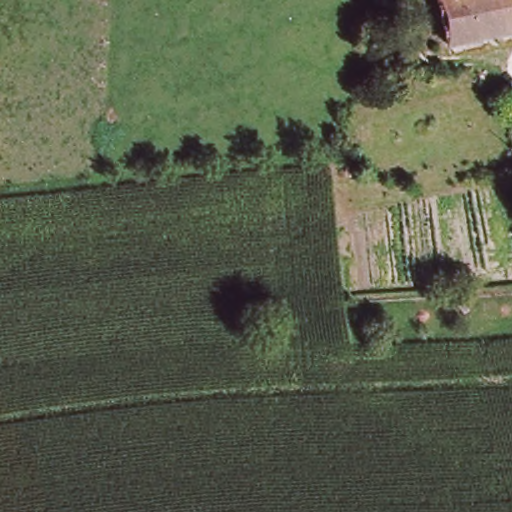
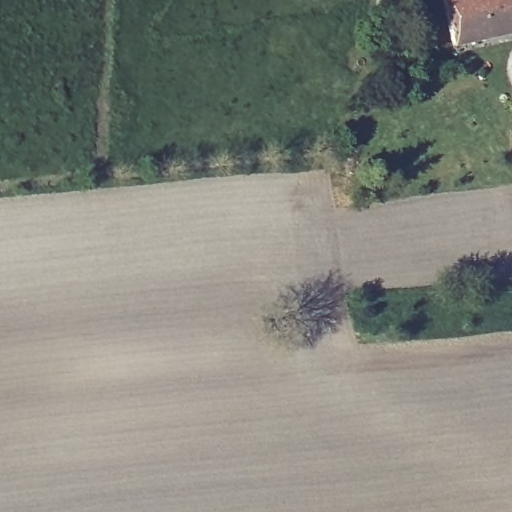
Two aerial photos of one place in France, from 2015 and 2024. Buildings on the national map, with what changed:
unchanged [(455,57),(442,5),(441,0),(467,0),(512,0),(512,44),(455,57)]

